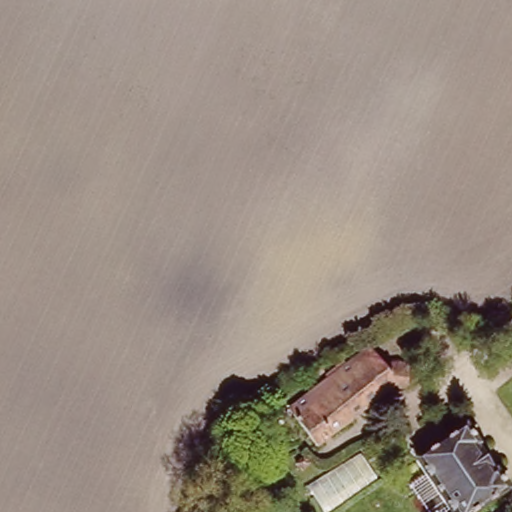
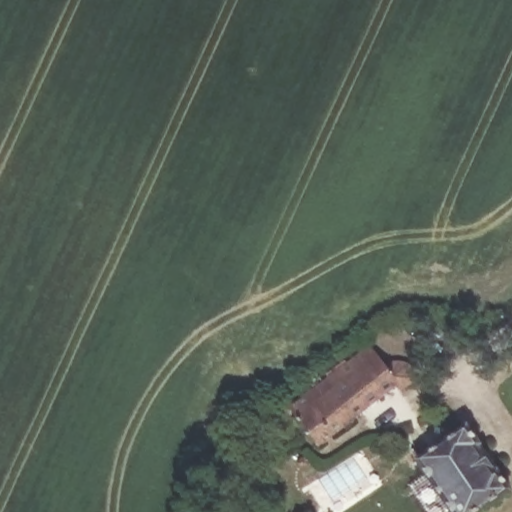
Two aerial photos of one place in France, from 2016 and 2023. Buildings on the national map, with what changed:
unchanged [(379,364),(385,367),(388,362),(406,362),(419,378),(400,392),(396,386),(318,444),(289,406),(366,347),(379,364)]
unchanged [(512,492),(482,512),(458,512),(422,459),(470,426),(512,488),(512,492)]

